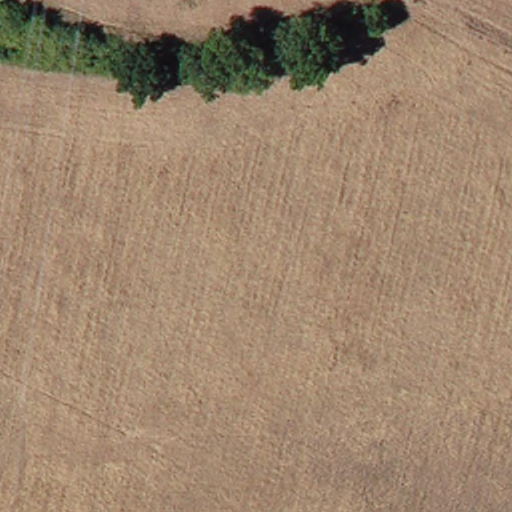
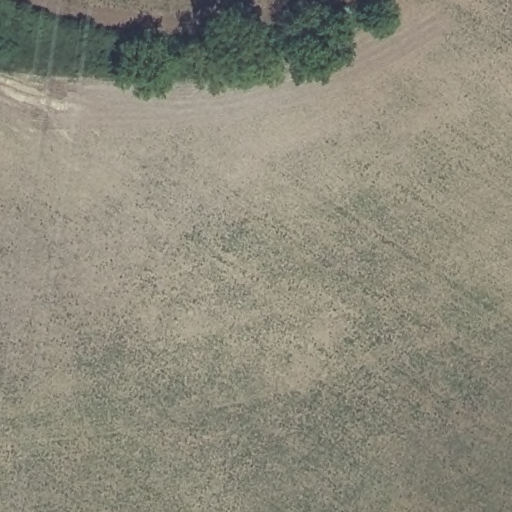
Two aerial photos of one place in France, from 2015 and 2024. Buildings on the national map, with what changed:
[]

